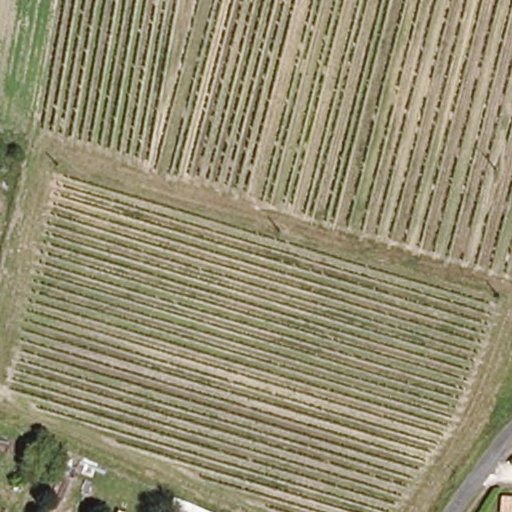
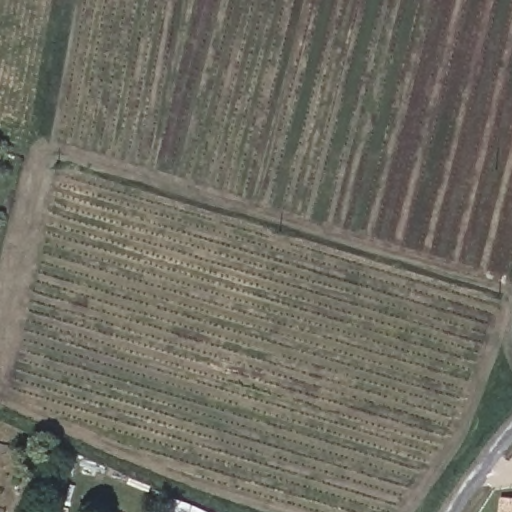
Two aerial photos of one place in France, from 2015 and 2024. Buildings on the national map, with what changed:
unchanged [(211,512),(184,512),(188,502),(211,512)]

